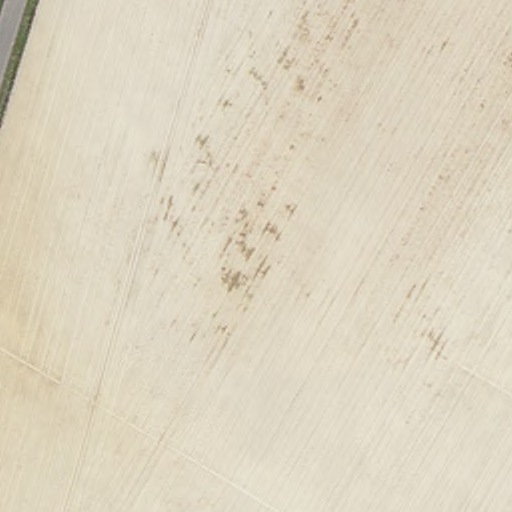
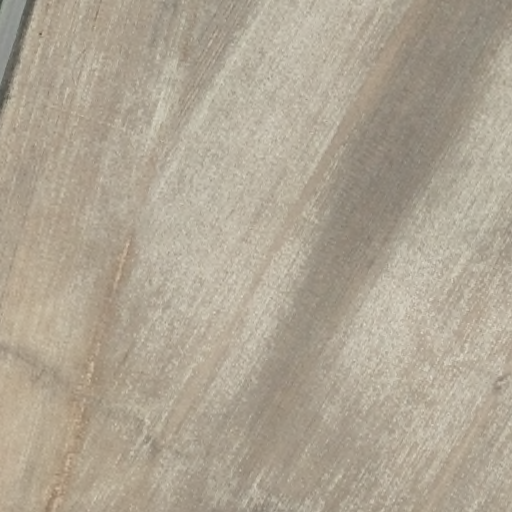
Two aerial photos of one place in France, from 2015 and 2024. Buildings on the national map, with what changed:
[]

